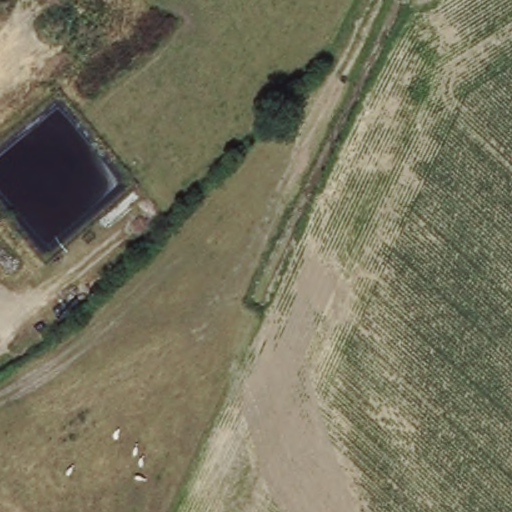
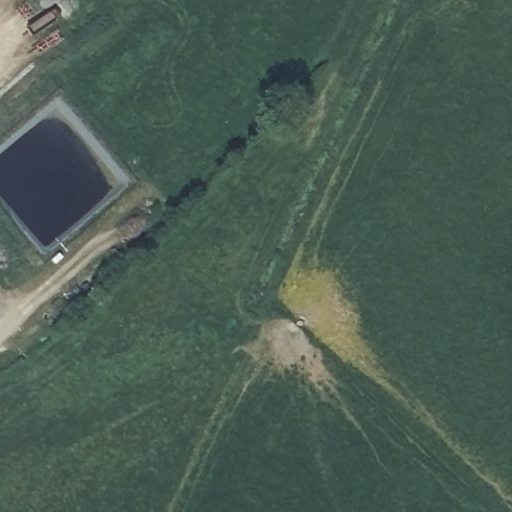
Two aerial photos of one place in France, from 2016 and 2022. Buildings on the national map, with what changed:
[]

